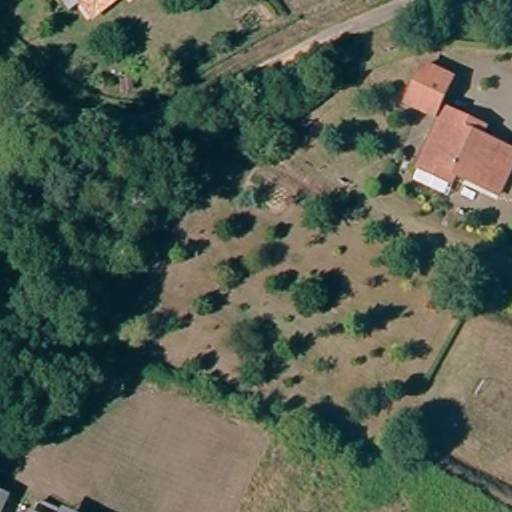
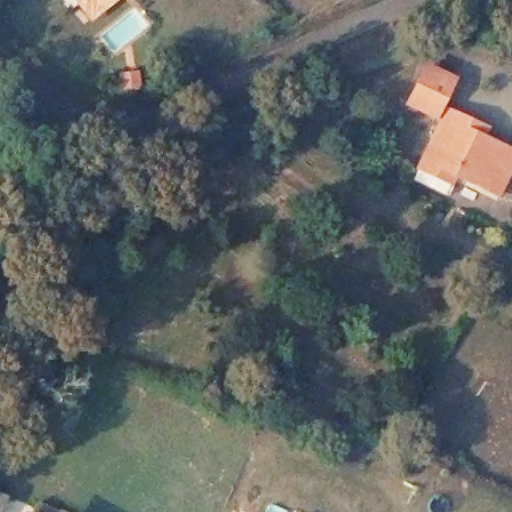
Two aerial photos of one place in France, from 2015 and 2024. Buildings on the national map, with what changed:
unchanged [(89,6),(84,0),(96,0),(89,6)]
unchanged [(417,165),(421,154),(438,112),(407,99),(423,60),(452,72),(440,102),(464,112),(485,122),(482,132),(512,145),(512,173),(504,191),(460,171),(455,181),(417,165)]
unchanged [(2,512),(0,512),(0,487),(11,492),(2,512)]
unchanged [(62,511),(65,512),(33,512),(38,502),(62,511)]
unchanged [(31,512),(25,512),(27,510),(31,512)]

